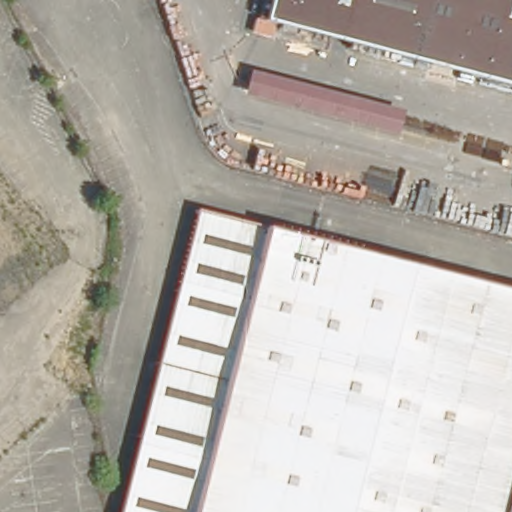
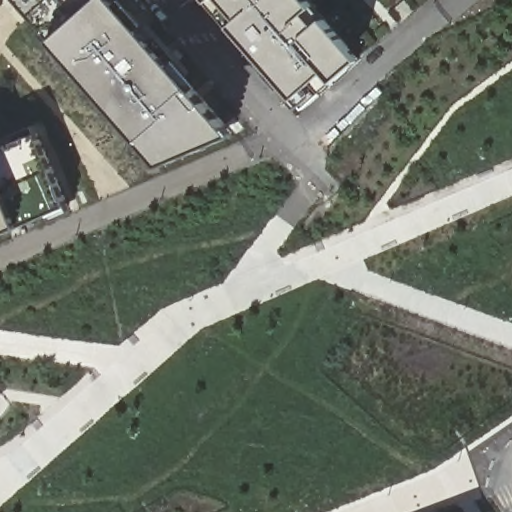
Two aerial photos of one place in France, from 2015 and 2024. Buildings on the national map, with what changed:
new [(161,165),(154,157),(31,16),(17,0),(49,0),(116,0),(226,126),(234,135),(161,165)]
new [(278,90),(276,92),(261,75),(262,73),(269,68),(232,26),(228,29),(207,5),(210,2),(211,1),(210,0),(309,0),(314,6),(316,4),(327,16),(325,19),(361,59),(336,81),(324,92),(323,92),(305,109),(303,106),(302,105),(298,109),(289,99),(293,95),(284,85),(278,90)]
demolished [(327,48),(263,30),(271,0),(512,0),(512,97),(347,53),(327,48)]
new [(394,8),(404,0),(413,10),(402,19),(394,8)]
new [(42,43),(27,25),(34,20),(49,37),(42,43)]
new [(143,30),(150,23),(192,71),(184,77),(143,30)]
new [(65,69),(46,47),(52,41),(71,62),(65,69)]
new [(87,94),(68,72),(75,66),(94,88),(87,94)]
demolished [(399,111),(392,134),(240,93),(246,70),(399,111)]
new [(110,120),(91,98),(98,92),(116,114),(110,120)]
new [(132,145),(114,124),(120,118),(139,140),(132,145)]
new [(0,181),(0,151),(36,135),(65,205),(18,226),(0,181)]
new [(18,226),(0,234),(0,181),(18,226)]
demolished [(273,217),(512,283),(512,480),(503,512),(192,512),(273,217)]

